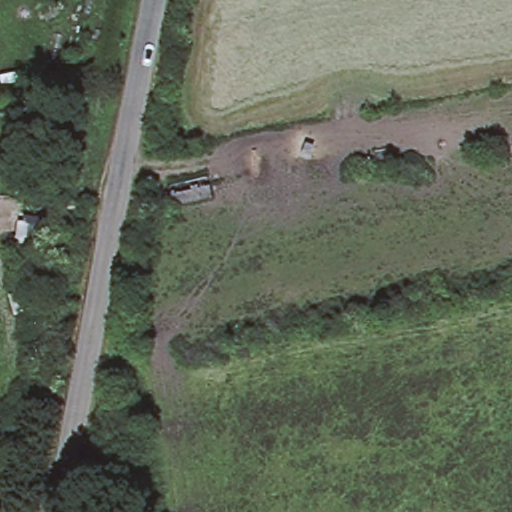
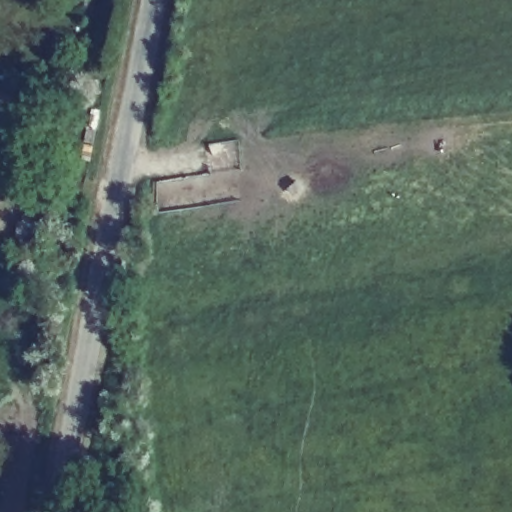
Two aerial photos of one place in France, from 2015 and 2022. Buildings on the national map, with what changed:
unchanged [(166,186),(207,176),(212,206),(170,212),(166,186)]
unchanged [(17,224),(39,222),(41,240),(18,242),(17,224)]

